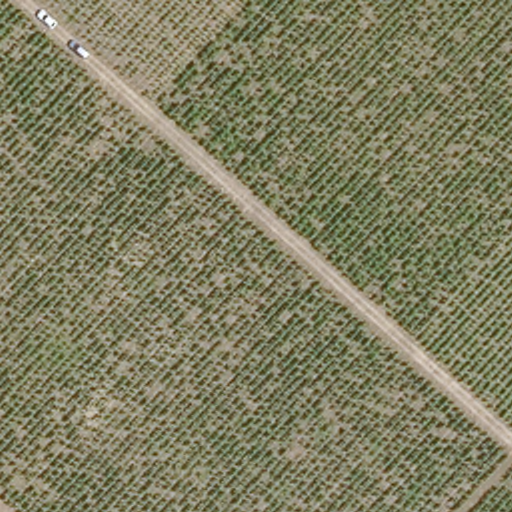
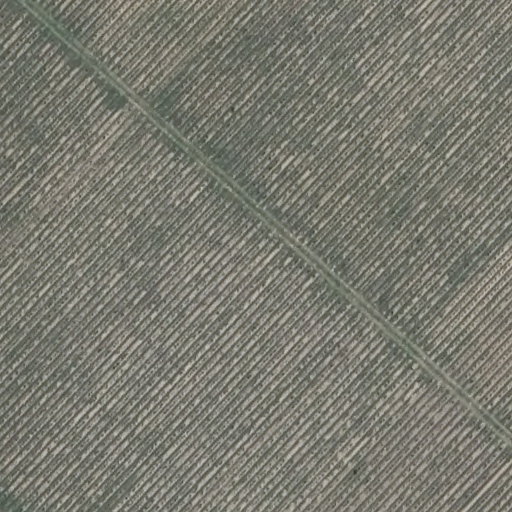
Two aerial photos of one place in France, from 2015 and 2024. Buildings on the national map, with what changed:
[]

